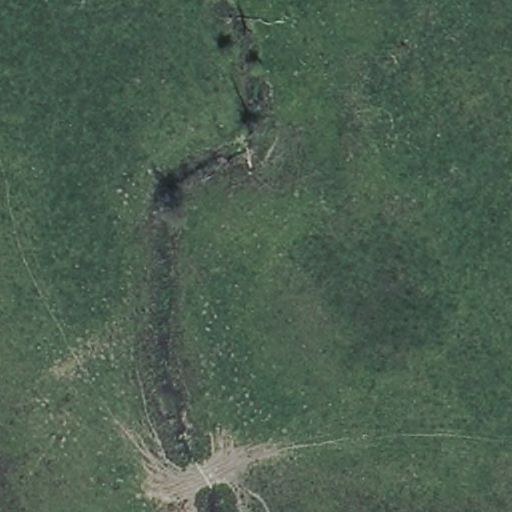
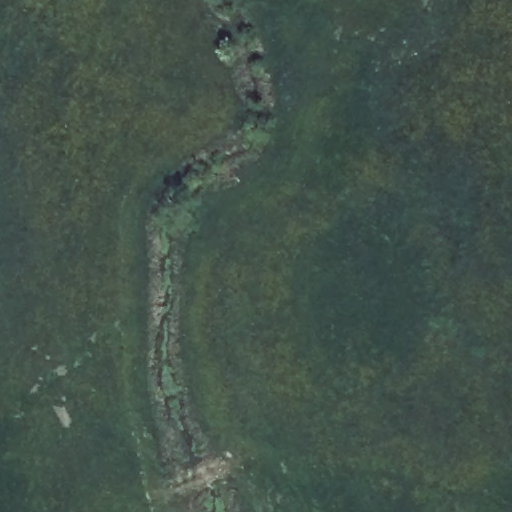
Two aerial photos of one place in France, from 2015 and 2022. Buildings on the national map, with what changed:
[]

